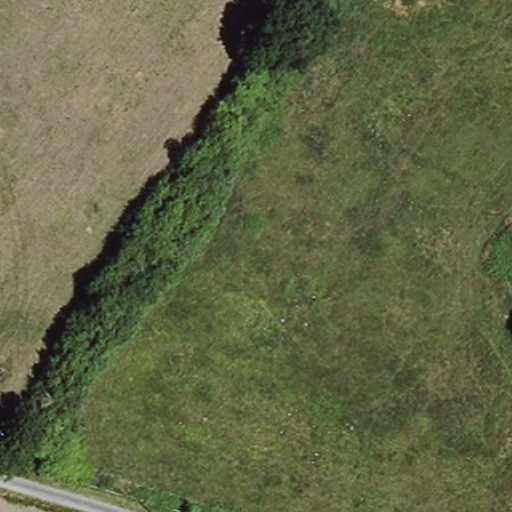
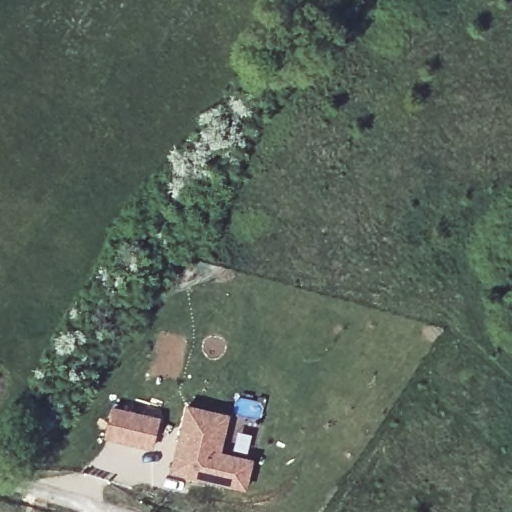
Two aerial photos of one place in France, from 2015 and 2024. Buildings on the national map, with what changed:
new [(185,402),(231,412),(223,449),(231,451),(236,429),(252,433),(247,456),(254,458),(247,491),(167,473),(185,402)]
new [(110,404),(161,415),(152,450),(103,439),(110,404)]

